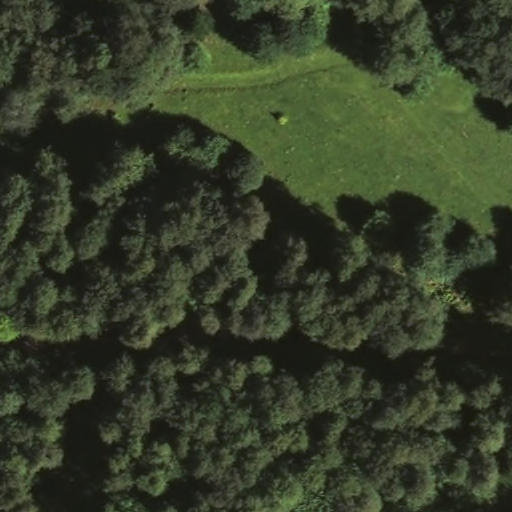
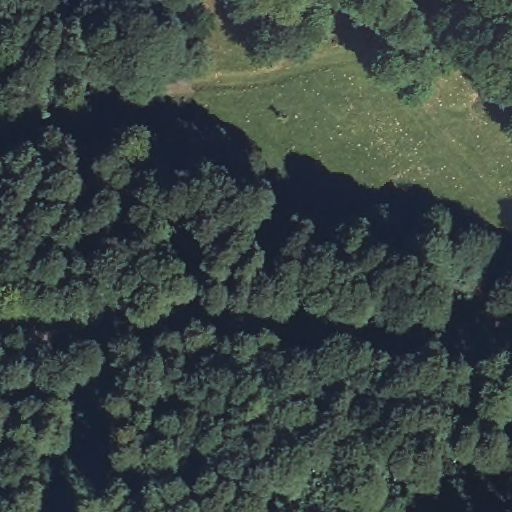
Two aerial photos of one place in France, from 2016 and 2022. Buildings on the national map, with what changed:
[]

